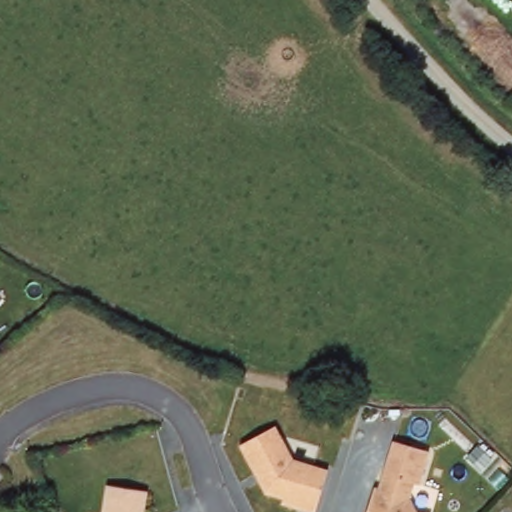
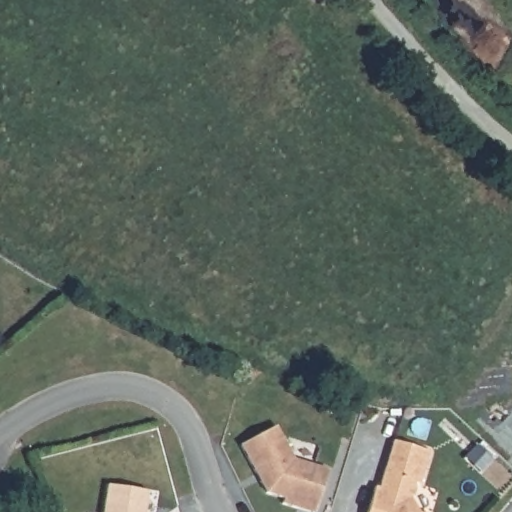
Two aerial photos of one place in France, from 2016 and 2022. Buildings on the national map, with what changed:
unchanged [(275,422),(292,455),(327,466),(314,509),(281,499),(283,494),(265,488),(240,441),(275,422)]
unchanged [(381,485),(395,437),(431,447),(421,481),(416,479),(410,493),(420,510),(429,512),(368,512),(377,483),(381,485)]
unchanged [(152,487),(148,512),(106,512),(111,481),(152,487)]

